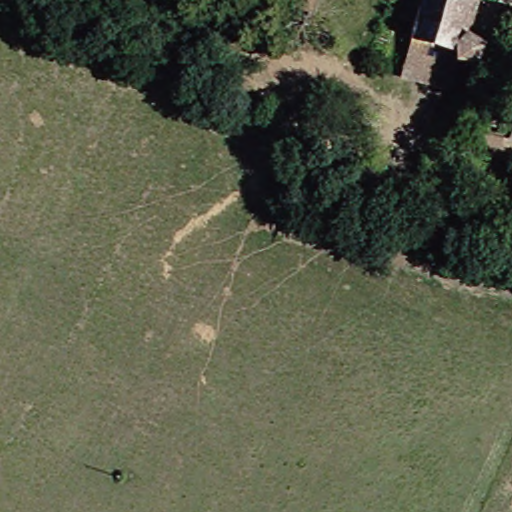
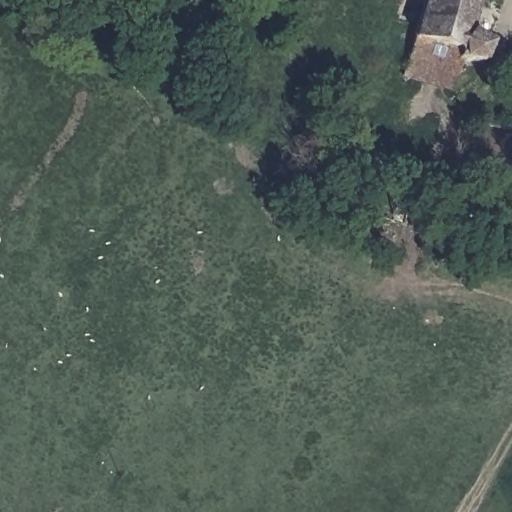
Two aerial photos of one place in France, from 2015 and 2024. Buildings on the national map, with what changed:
unchanged [(466,27),(491,47),(484,65),(456,59),(443,99),(388,89),(415,0),(473,0),(466,27)]

